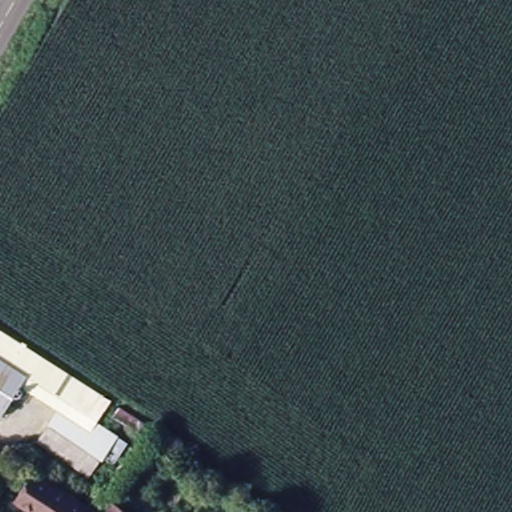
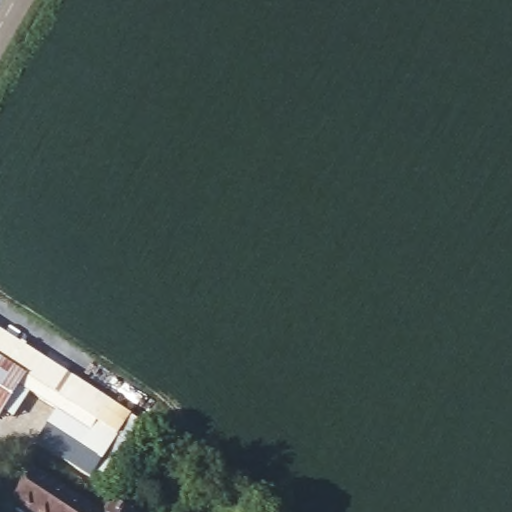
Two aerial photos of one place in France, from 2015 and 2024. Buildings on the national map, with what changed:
unchanged [(110,405),(92,433),(34,396),(21,388),(0,421),(0,329),(52,364),(110,405)]
unchanged [(56,419),(91,442),(104,425),(119,437),(94,476),(41,440),(56,419)]
unchanged [(27,506),(45,481),(90,512),(36,512),(27,506)]
unchanged [(120,507),(127,512),(116,512),(120,507)]

